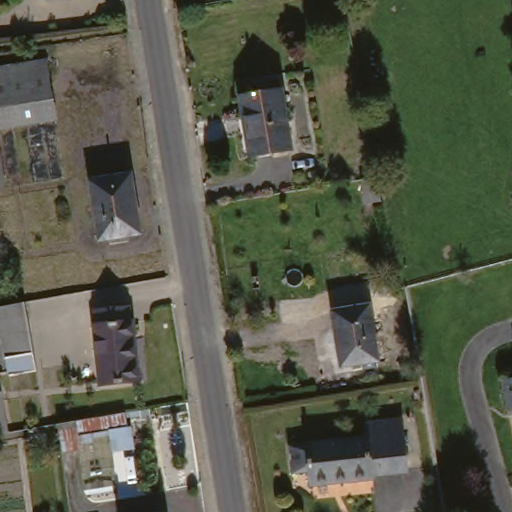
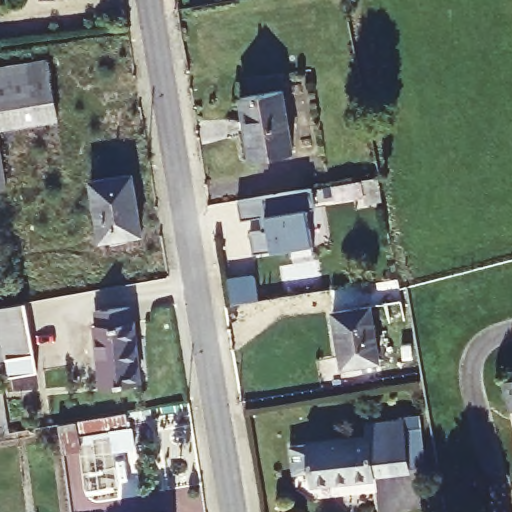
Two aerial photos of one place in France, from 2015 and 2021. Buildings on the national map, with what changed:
unchanged [(40,1),(39,0),(42,0),(40,1)]
unchanged [(44,64),(51,115),(0,125),(0,72),(44,64)]
unchanged [(281,92),(291,149),(242,157),(236,123),(246,121),(243,97),(281,92)]
unchanged [(0,185),(0,167),(2,180),(3,185),(0,185)]
unchanged [(127,172),(136,232),(97,239),(88,179),(127,172)]
new [(250,232),(262,230),(260,216),(241,219),(238,200),(312,187),(315,206),(307,207),(311,242),(273,247),(255,252),(250,232)]
unchanged [(5,382),(2,362),(0,363),(0,310),(24,306),(32,358),(35,378),(5,382)]
unchanged [(126,310),(130,328),(132,328),(140,382),(100,387),(92,337),(95,337),(91,316),(126,310)]
unchanged [(368,313),(376,369),(344,373),(335,317),(368,313)]
unchanged [(494,387),(507,385),(506,378),(512,377),(512,411),(502,413),(494,387)]
unchanged [(1,389),(9,430),(0,431),(0,389),(1,389)]
unchanged [(75,437),(77,450),(60,452),(55,423),(106,416),(124,413),(125,430),(129,452),(108,455),(104,432),(75,437)]
unchanged [(401,422),(410,475),(390,477),(310,487),(308,476),(290,478),(285,453),(303,451),(364,443),(361,428),(401,422)]

